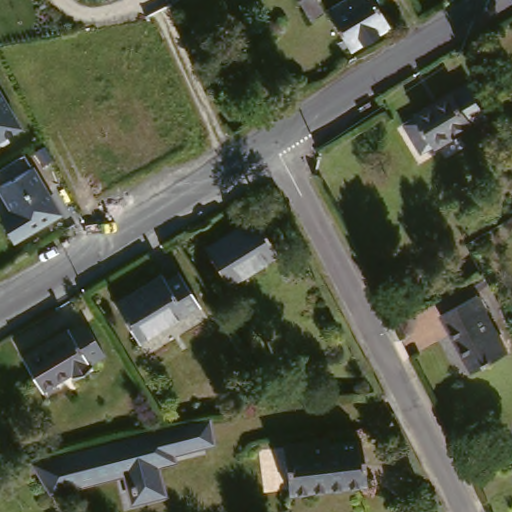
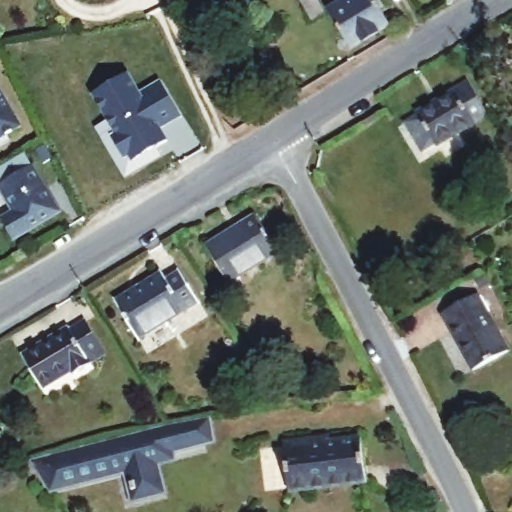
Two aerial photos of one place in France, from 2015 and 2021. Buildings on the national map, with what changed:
unchanged [(310,26),(296,5),(303,0),(309,0),(321,18),(310,26)]
unchanged [(387,27),(348,52),(325,12),(347,0),(371,0),(387,27)]
new [(95,95),(129,75),(141,95),(161,83),(181,117),(160,129),(167,141),(134,161),(130,155),(126,156),(114,136),(117,134),(95,95)]
unchanged [(437,149),(417,116),(467,85),(487,118),(437,149)]
unchanged [(0,94),(20,127),(0,138),(0,94)]
unchanged [(58,212),(12,240),(0,220),(0,219),(12,212),(0,191),(0,184),(31,166),(58,212)]
unchanged [(281,253),(228,285),(206,248),(258,215),(281,253)]
unchanged [(182,271),(199,304),(140,340),(117,300),(164,271),(167,280),(182,271)]
unchanged [(510,352),(474,371),(441,315),(477,295),(510,352)]
unchanged [(106,350),(87,361),(92,370),(45,398),(18,352),(65,323),(66,327),(86,316),(106,350)]
unchanged [(167,448),(167,453),(151,458),(156,481),(152,482),(154,490),(134,495),(132,486),(129,487),(121,455),(106,458),(107,467),(90,471),(91,475),(79,478),(79,474),(63,477),(46,488),(29,460),(27,455),(53,447),(71,442),(94,433),(115,430),(124,427),(147,425),(163,422),(205,413),(209,434),(209,437),(195,441),(167,448)]
unchanged [(363,440),(368,485),(292,497),(286,442),(315,439),(315,446),(363,440)]

